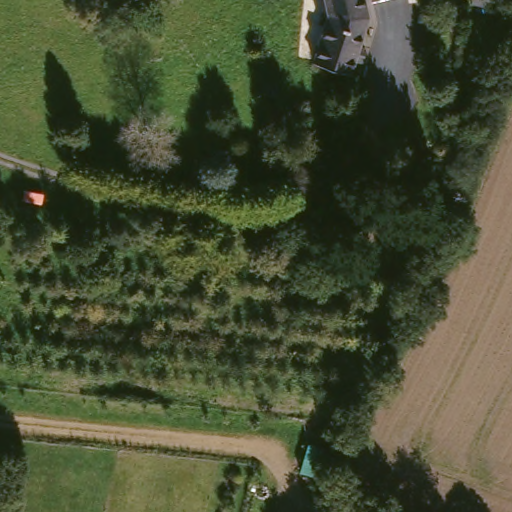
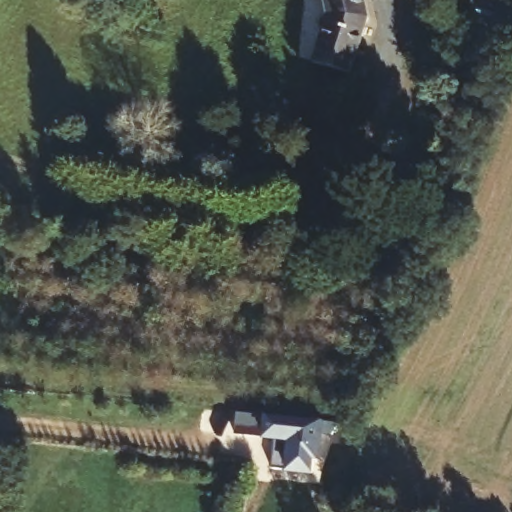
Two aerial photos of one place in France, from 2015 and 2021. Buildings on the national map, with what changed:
unchanged [(325,12),(323,0),(363,0),(367,22),(350,74),(310,61),(325,12)]
new [(363,0),(371,0),(363,1),(363,0)]
new [(333,435),(321,433),(318,460),(314,460),(312,473),(271,469),(275,439),(265,437),(235,435),(237,413),(266,416),(339,423),(333,435)]

